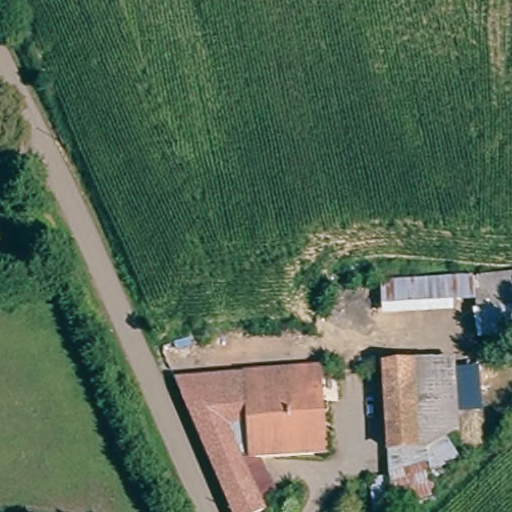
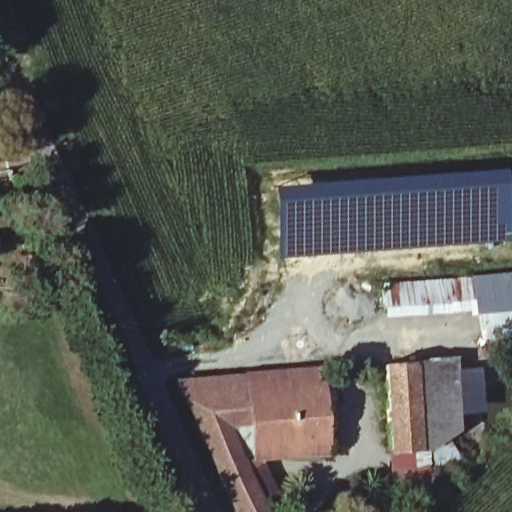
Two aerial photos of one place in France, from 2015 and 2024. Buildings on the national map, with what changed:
new [(503,167),(508,241),(403,252),(278,260),(272,185),(503,167)]
new [(473,302),(454,302),(454,312),(385,317),(383,284),(470,278),(512,275),(512,338),(480,342),(473,302)]
demolished [(491,280),(512,279),(512,328),(492,329),(491,280)]
unchanged [(469,361),(474,434),(427,458),(422,365),(469,361)]
unchanged [(401,458),(393,367),(422,365),(427,458),(401,458)]
unchanged [(177,378),(322,367),(328,448),(260,456),(257,424),(236,426),(242,457),(271,509),(266,512),(241,512),(177,378)]
new [(390,458),(401,458),(427,458),(435,492),(392,506),(390,475),(390,458)]

